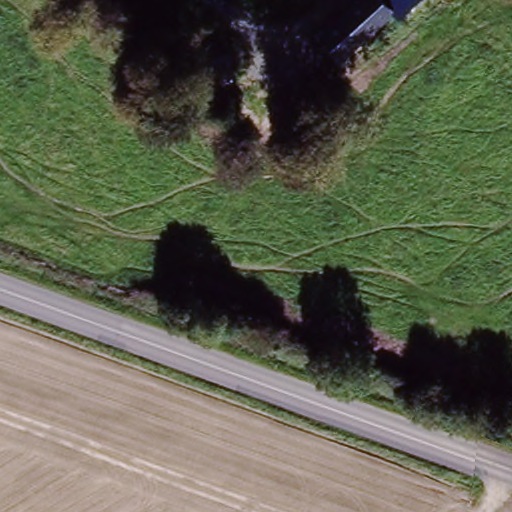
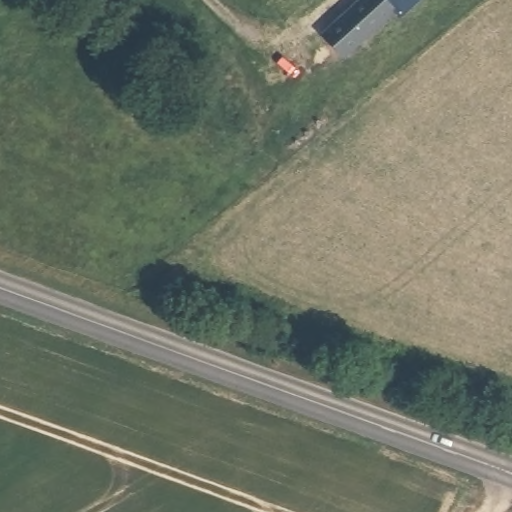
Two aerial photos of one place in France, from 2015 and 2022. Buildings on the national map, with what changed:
unchanged [(403,22),(396,14),(348,61),(321,30),(355,0),(425,0),(403,22)]

